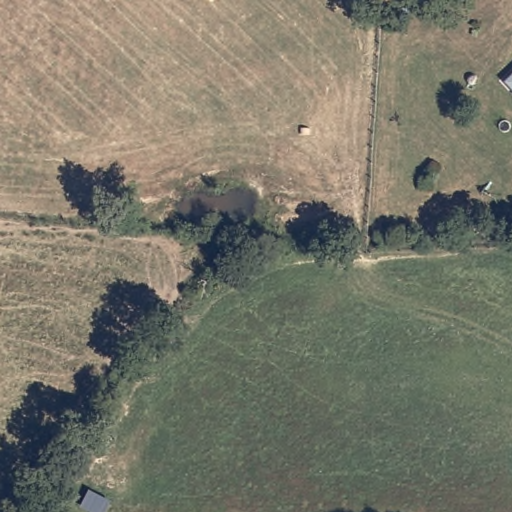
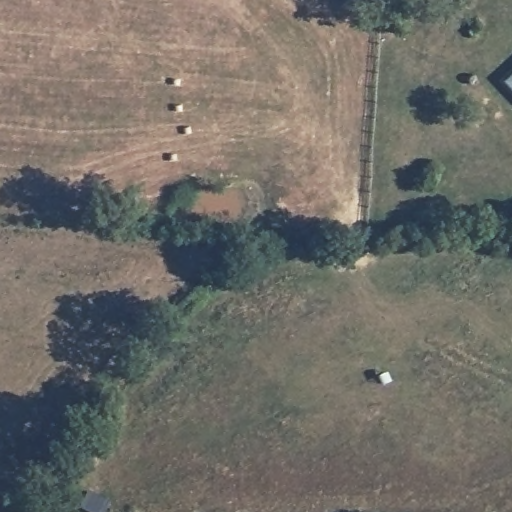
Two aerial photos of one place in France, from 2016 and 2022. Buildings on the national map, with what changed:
unchanged [(505,85),(512,77),(512,92),(505,85)]

